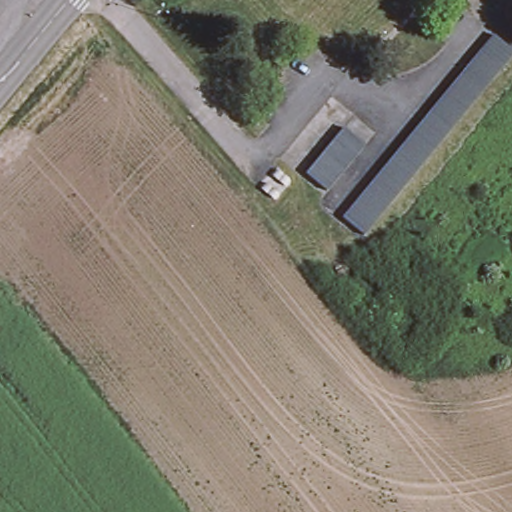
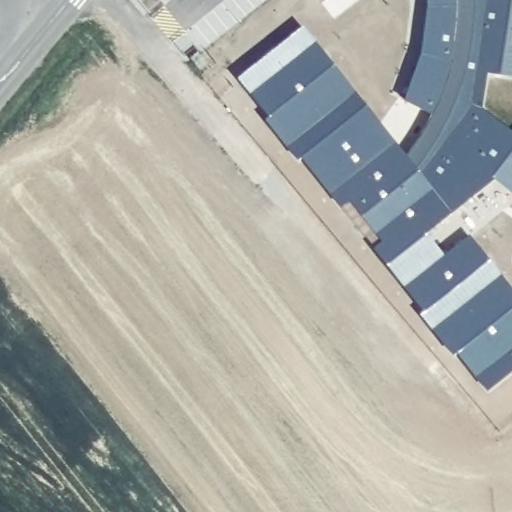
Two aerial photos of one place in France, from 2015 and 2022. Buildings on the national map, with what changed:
new [(405,157),(430,114),(405,99),(416,60),(426,5),(426,0),(512,0),(512,79),(490,75),(482,106),(512,130),(512,194),(493,180),(428,236),(445,255),(468,237),(512,291),(512,372),(490,390),(235,79),(301,25),(405,157)]
demolished [(375,179),(385,168),(395,156),(406,145),(416,134),(426,121),(437,110),(447,99),(458,86),(468,76),(478,64),(490,52),(500,40),(512,52),(512,69),(510,71),(500,83),(489,95),(480,105),(468,118),(459,129),(448,141),(437,153),(428,164),(417,175),(406,187),(397,198),(387,210),(376,221),(367,231),(360,240),(337,220),(345,212),(355,201),(365,190),(375,179)]
demolished [(331,138),(340,126),(362,145),(352,157),(341,170),(331,181),(321,192),(300,174),(310,162),(320,150),(331,138)]

